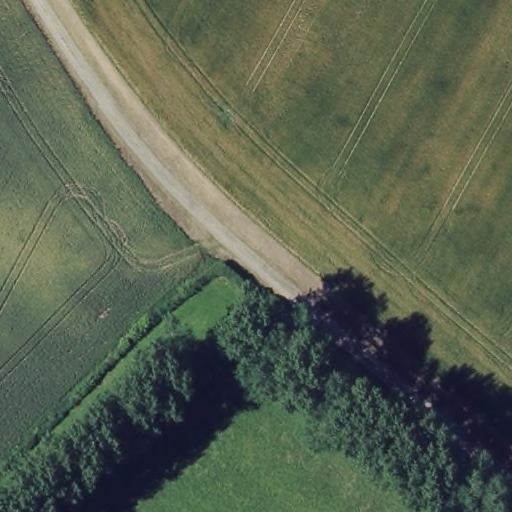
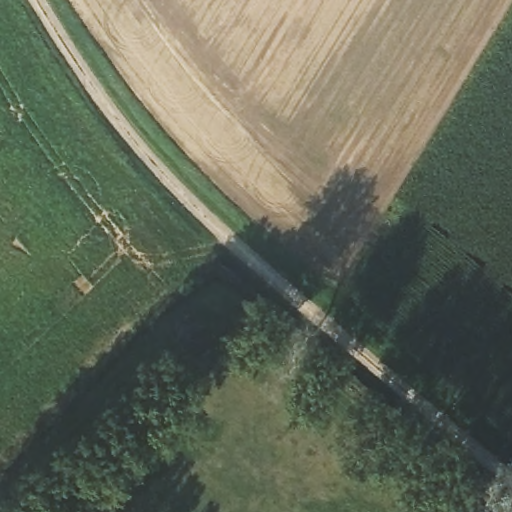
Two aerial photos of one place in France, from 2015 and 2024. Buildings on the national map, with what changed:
[]

